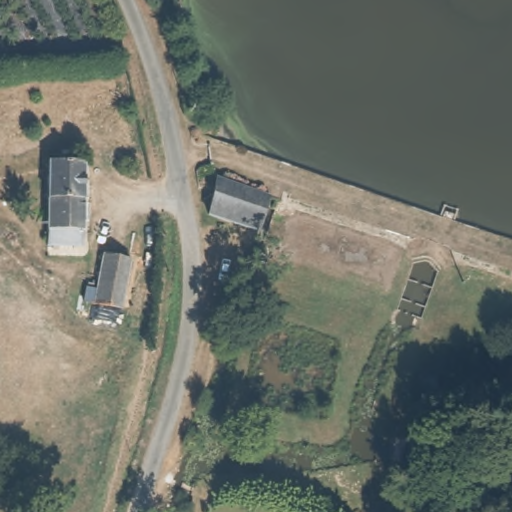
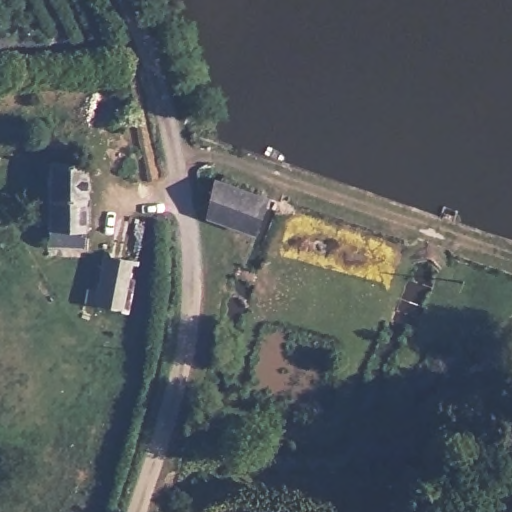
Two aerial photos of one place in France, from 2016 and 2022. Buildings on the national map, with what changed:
unchanged [(85,244),(48,243),(50,167),(86,168),(85,244)]
unchanged [(220,180),(270,194),(258,233),(207,219),(220,180)]
unchanged [(92,309),(101,254),(135,258),(125,311),(92,309)]

